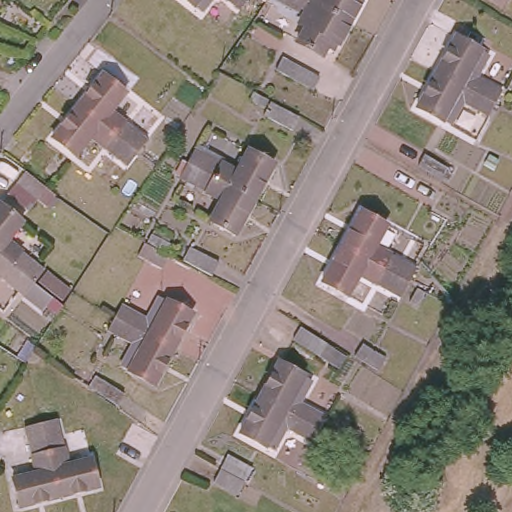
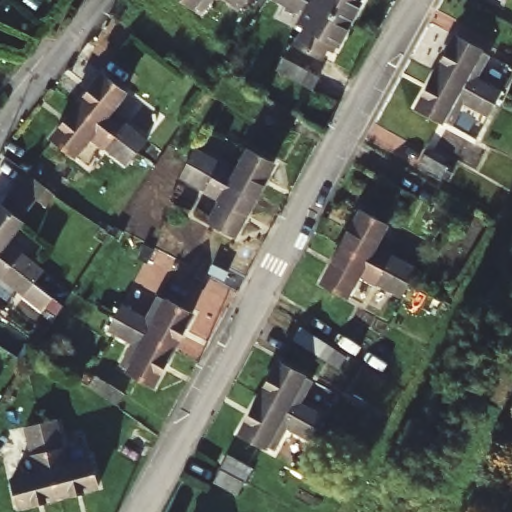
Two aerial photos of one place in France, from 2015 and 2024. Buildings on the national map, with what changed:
unchanged [(199,0),(194,5),(188,0),(199,0)]
unchanged [(248,0),(241,9),(229,0),(248,0)]
unchanged [(327,46),(323,54),(299,41),(306,27),(299,23),(306,10),(298,5),(295,10),(276,0),(357,0),(360,0),(359,1),(348,22),(338,42),(334,49),(327,46)]
unchanged [(433,71),(452,36),(477,50),(458,85),(433,71)]
unchanged [(313,72),(306,86),(282,74),(289,60),(313,72)]
unchanged [(433,71),(458,85),(439,120),(414,106),(433,71)]
unchanged [(102,75),(124,92),(111,110),(149,139),(139,151),(131,145),(79,105),(102,75)]
unchanged [(488,109),(469,99),(473,93),(476,86),(494,96),(491,103),(488,109)]
unchanged [(298,115),(292,127),(269,115),(276,104),(298,115)]
unchanged [(131,145),(139,151),(128,165),(90,136),(77,153),(54,135),(79,105),(131,145)]
unchanged [(196,145),(223,160),(238,168),(248,149),(273,162),(254,197),(188,160),(196,145)]
unchanged [(427,155),(448,166),(442,177),(421,166),(427,155)]
unchanged [(236,231),(211,218),(223,197),(179,175),(188,160),(254,197),(236,231)]
unchanged [(63,195),(56,205),(46,199),(44,200),(43,199),(34,211),(12,195),(29,171),(63,195)]
unchanged [(444,195),(468,208),(461,220),(439,207),(444,195)]
unchanged [(3,240),(41,270),(30,283),(0,258),(0,208),(17,221),(3,240)]
unchanged [(344,246),(363,210),(388,224),(376,245),(391,254),(387,262),(404,272),(402,277),(344,246)]
unchanged [(163,267),(138,255),(144,240),(170,255),(163,267)]
unchanged [(344,246),(402,277),(399,283),(381,273),(376,282),(361,274),(349,295),(325,281),(344,246)]
unchanged [(219,259),(213,273),(191,262),(198,249),(219,259)]
unchanged [(21,295),(0,279),(0,258),(30,283),(21,295)]
unchanged [(127,306),(161,325),(173,302),(198,315),(178,351),(153,338),(122,320),(120,319),(127,306)]
unchanged [(158,387),(133,374),(146,351),(113,333),(120,319),(122,320),(153,338),(178,351),(158,387)]
unchanged [(363,343),(384,357),(378,370),(356,355),(363,343)]
unchanged [(335,348),(359,364),(353,377),(328,361),(335,348)]
unchanged [(256,396),(274,360),(301,375),(281,410),(256,396)]
unchanged [(125,393),(118,403),(96,390),(103,379),(125,393)]
unchanged [(256,396),(281,410),(261,446),(236,432),(256,396)]
unchanged [(311,434),(291,423),(295,418),(299,412),(316,422),(314,428),(311,434)]
unchanged [(40,426),(58,422),(69,468),(91,462),(98,490),(60,500),(40,426)]
unchanged [(40,426),(60,500),(23,510),(15,483),(38,476),(25,430),(40,426)]
unchanged [(220,470),(246,485),(239,497),(213,483),(220,470)]

